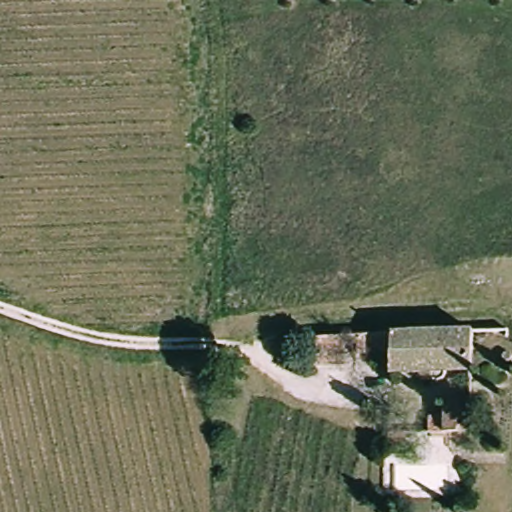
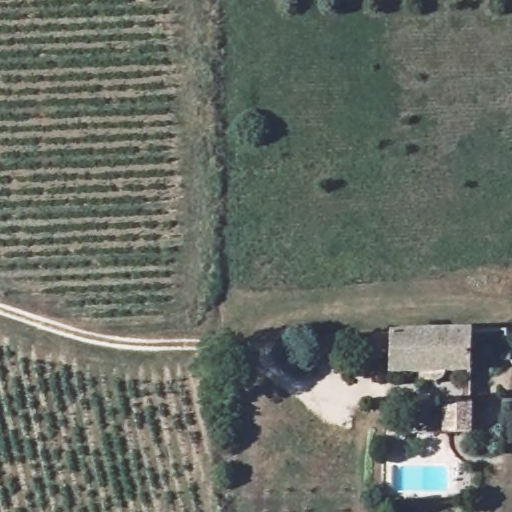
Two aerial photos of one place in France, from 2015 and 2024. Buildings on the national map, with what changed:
unchanged [(394,376),(394,367),(381,367),(380,348),(329,348),(329,336),(380,334),(473,331),(470,373),(394,376)]
unchanged [(436,422),(437,406),(462,407),(462,437),(435,438),(417,438),(419,420),(436,422)]
unchanged [(388,450),(390,426),(409,427),(407,452),(397,451),(388,450)]

